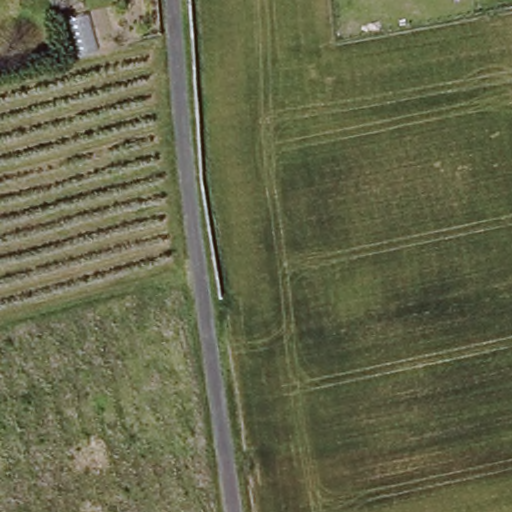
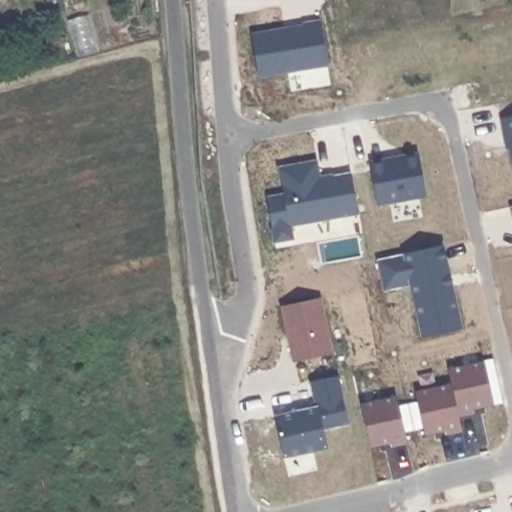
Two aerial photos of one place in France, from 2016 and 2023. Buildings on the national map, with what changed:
new [(306,26),(306,24),(323,20),(331,66),(261,77),(254,35),(306,26)]
new [(512,118),(512,150),(509,135),(507,135),(504,120),(512,118)]
new [(421,155),(429,196),(379,205),(372,163),(421,155)]
new [(286,195),(281,169),(319,161),(323,180),(354,174),(361,213),(293,226),(296,239),(278,242),(269,198),(286,195)]
new [(445,245),(451,269),(464,328),(424,336),(413,283),(387,290),(380,260),(439,247),(445,245)]
new [(323,297),(334,353),(297,362),(284,305),(323,297)]
new [(487,361),(496,403),(475,408),(476,412),(461,415),(454,383),(451,369),(487,361)]
new [(303,411),(304,416),(321,412),(314,381),(341,375),(351,423),(326,428),(329,447),(286,456),(278,416),(303,411)]
new [(454,383),(461,415),(464,430),(449,433),(448,428),(427,433),(418,391),(454,383)]
new [(399,396),(409,442),(394,445),(393,441),(372,446),(363,404),(399,396)]

